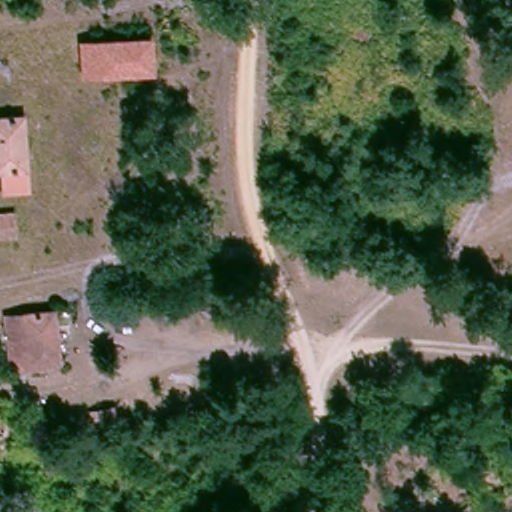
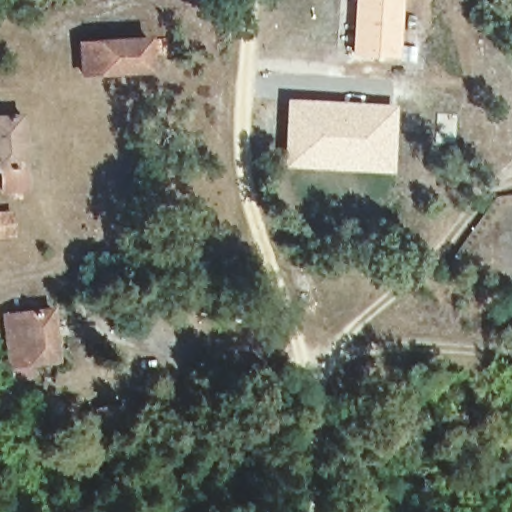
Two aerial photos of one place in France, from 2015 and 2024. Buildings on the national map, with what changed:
new [(353,0),(403,0),(401,46),(403,46),(403,57),(352,54),(353,0)]
unchanged [(80,43),(94,42),(144,40),(145,71),(96,73),(81,74),(80,43)]
new [(287,102),(396,108),(392,174),(284,169),(287,102)]
new [(436,111),(458,113),(455,146),(434,144),(436,111)]
unchanged [(27,191),(3,193),(0,173),(0,118),(25,118),(27,191)]
unchanged [(14,239),(0,239),(0,212),(12,211),(14,239)]
unchanged [(58,358),(14,363),(8,316),(53,309),(58,358)]
unchanged [(384,405),(386,421),(336,426),(336,409),(384,405)]
unchanged [(103,440),(84,444),(81,430),(102,426),(105,440),(103,440)]

